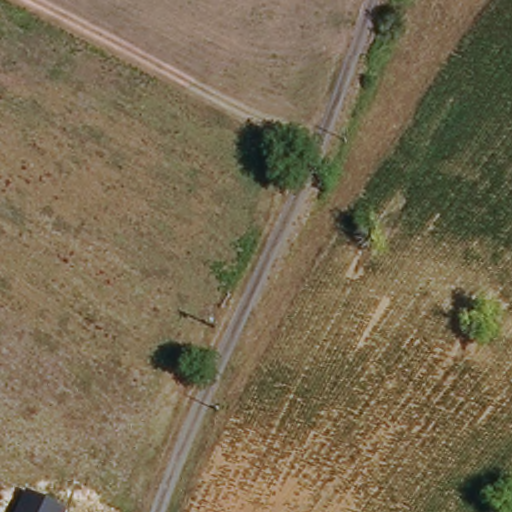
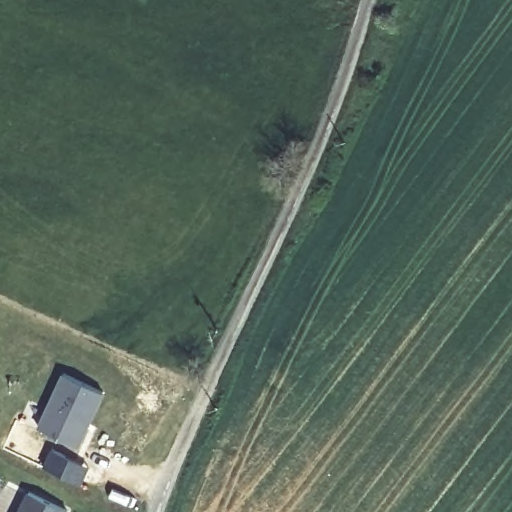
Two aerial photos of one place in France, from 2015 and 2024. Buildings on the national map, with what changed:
new [(37,426),(62,371),(104,392),(77,445),(37,426)]
unchanged [(70,512),(19,512),(30,490),(70,512)]

